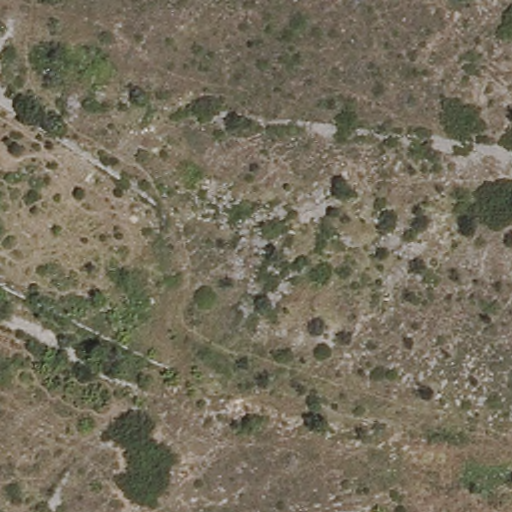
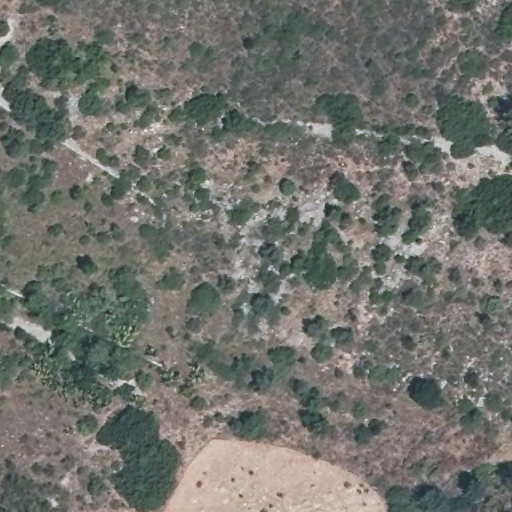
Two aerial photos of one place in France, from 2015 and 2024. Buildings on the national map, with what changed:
[]

